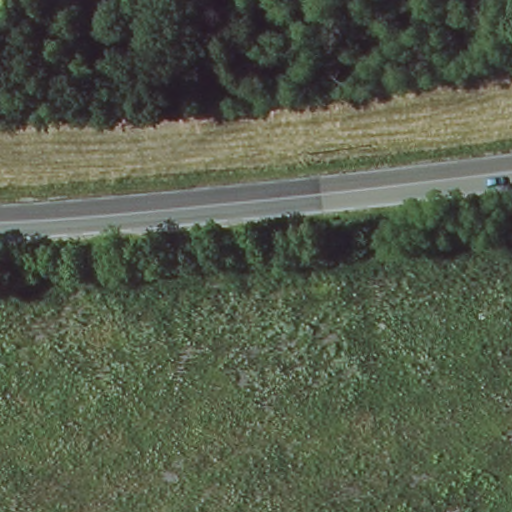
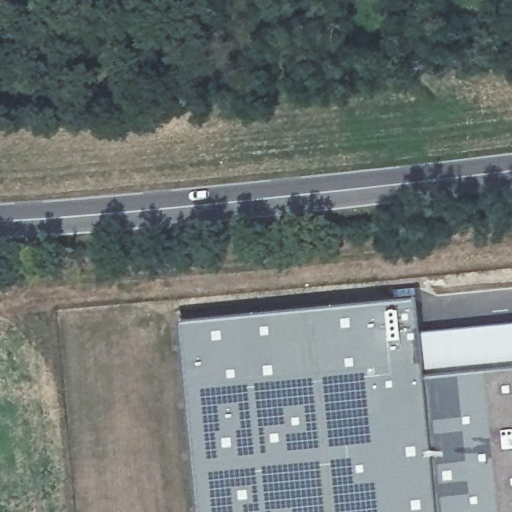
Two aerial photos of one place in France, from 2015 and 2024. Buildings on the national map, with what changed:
new [(419,333),(512,324),(512,512),(197,512),(179,321),(417,297),(419,333)]

